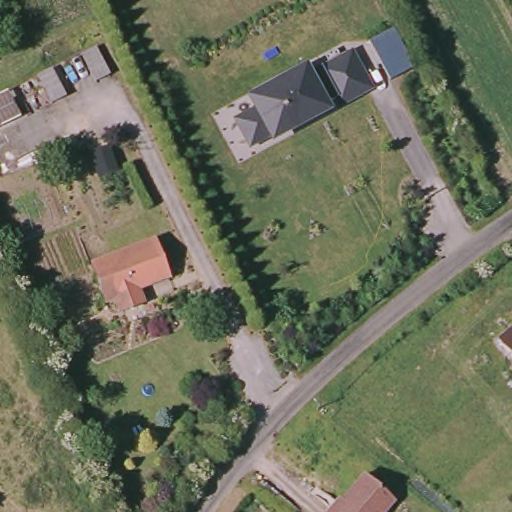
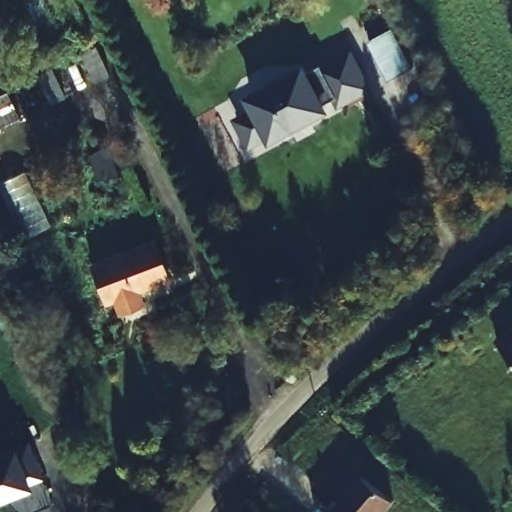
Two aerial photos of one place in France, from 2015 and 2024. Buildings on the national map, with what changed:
unchanged [(393,29),(414,68),(389,81),(369,42),(393,29)]
unchanged [(374,89),(344,106),(339,97),(328,103),(333,111),(272,143),(269,139),(248,149),(233,119),(253,109),(246,96),(306,64),(309,71),(321,65),(353,50),(374,89)]
unchanged [(109,85),(98,91),(84,64),(96,58),(109,85)]
unchanged [(65,106),(53,113),(40,86),(52,80),(65,106)]
new [(7,91),(20,118),(0,128),(0,94),(7,91)]
unchanged [(109,159),(118,182),(99,188),(91,165),(109,159)]
unchanged [(169,280),(139,292),(146,306),(122,316),(116,302),(108,305),(94,267),(154,243),(169,280)]
unchanged [(512,349),(511,347),(512,346),(512,349)]
new [(0,494),(0,450),(26,439),(41,473),(53,501),(30,510),(20,486),(21,485),(0,494)]
unchanged [(330,505),(333,507),(362,472),(392,497),(380,512),(324,512),(330,505)]

